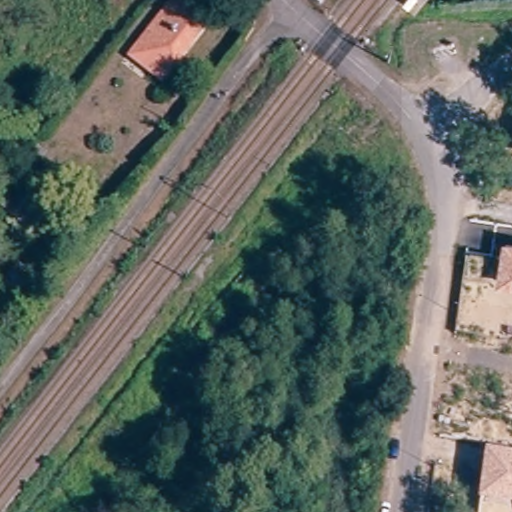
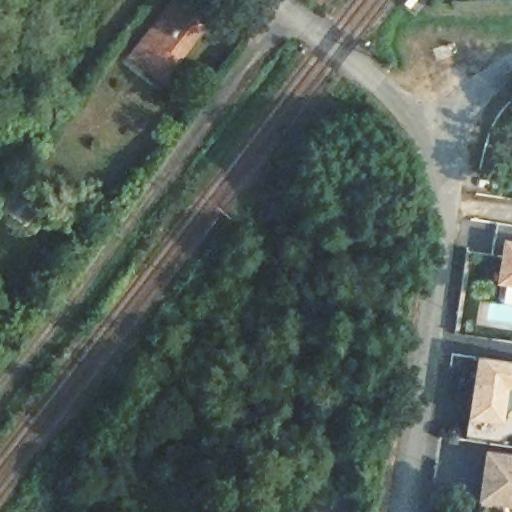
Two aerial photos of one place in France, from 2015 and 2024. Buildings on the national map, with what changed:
unchanged [(162,79),(130,53),(172,0),(182,0),(207,20),(162,79)]
unchanged [(37,146),(48,154),(30,176),(20,168),(37,146)]
unchanged [(15,238),(0,226),(0,211),(17,190),(39,208),(37,210),(64,231),(44,256),(17,235),(15,238)]
unchanged [(497,284),(502,238),(512,239),(512,287),(497,284)]
unchanged [(15,299),(0,286),(0,285),(16,266),(31,279),(15,299)]
new [(503,446),(476,442),(472,442),(484,359),(488,360),(512,363),(512,387),(503,446)]
unchanged [(477,500),(485,450),(512,454),(512,505),(477,500)]

